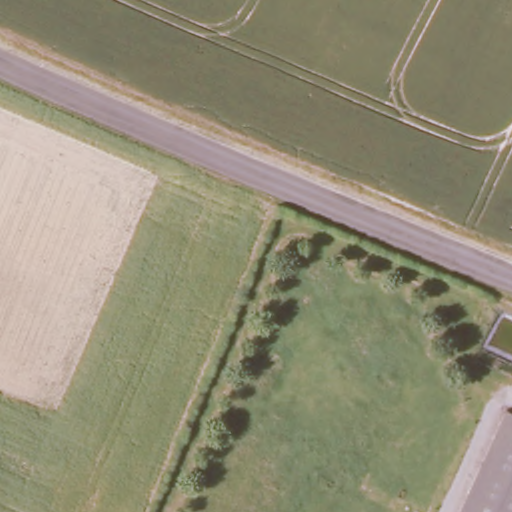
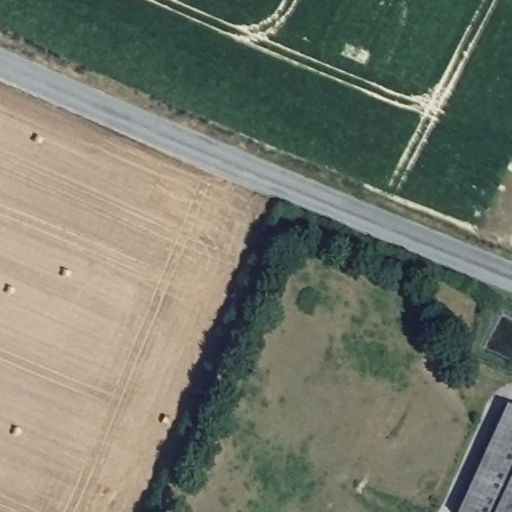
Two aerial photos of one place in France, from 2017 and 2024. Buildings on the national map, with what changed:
unchanged [(507,407),(512,409),(512,512),(460,512),(507,407)]

